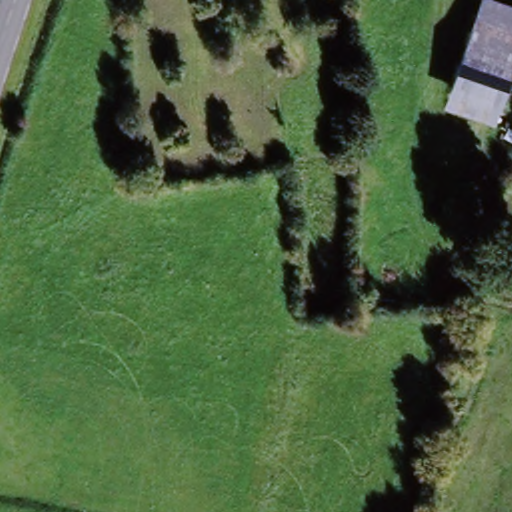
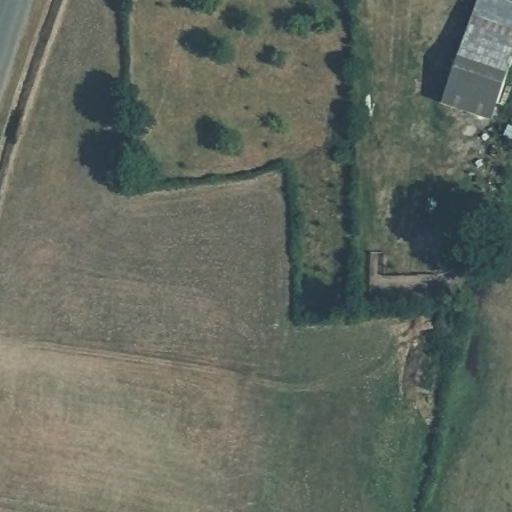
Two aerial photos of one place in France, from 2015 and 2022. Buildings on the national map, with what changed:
unchanged [(448,88),(477,0),(492,0),(512,7),(512,53),(494,104),(448,88)]

